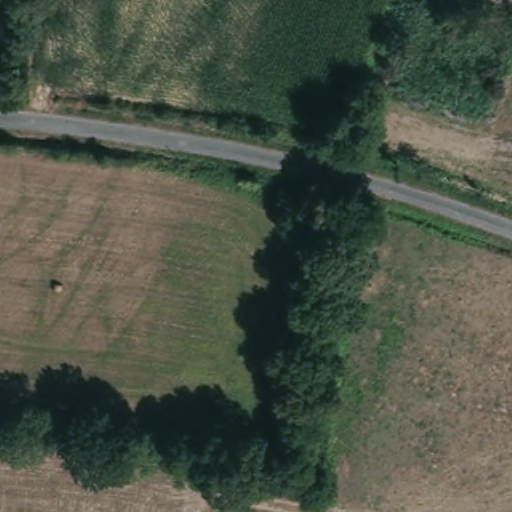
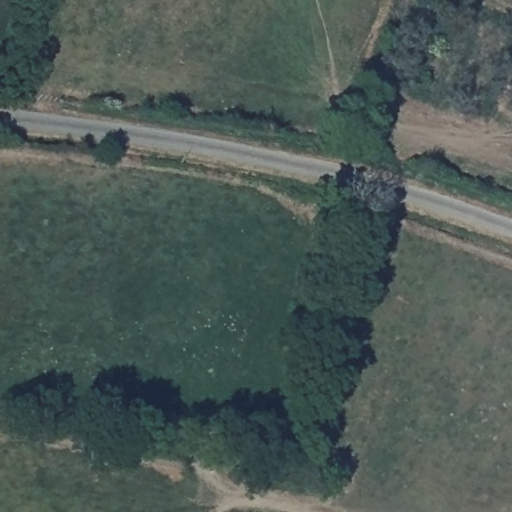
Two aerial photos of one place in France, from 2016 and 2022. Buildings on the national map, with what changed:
[]

